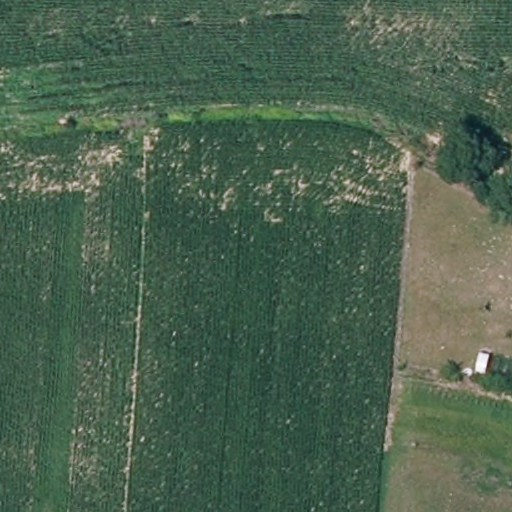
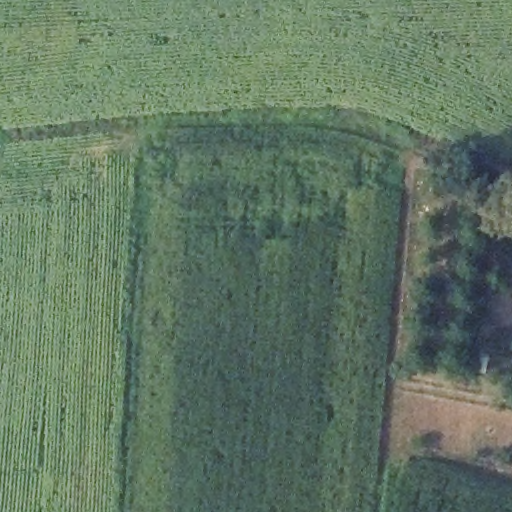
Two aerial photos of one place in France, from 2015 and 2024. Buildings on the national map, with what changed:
[]

